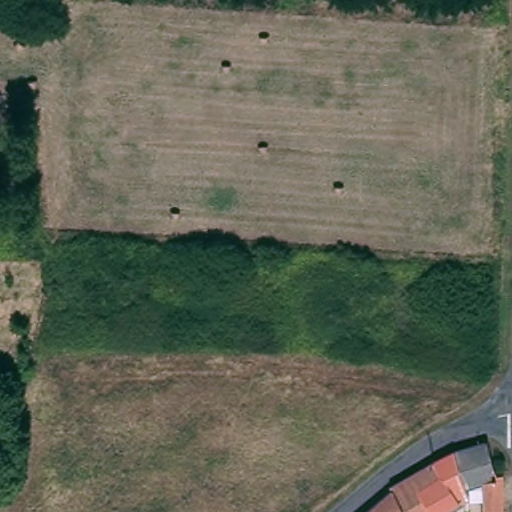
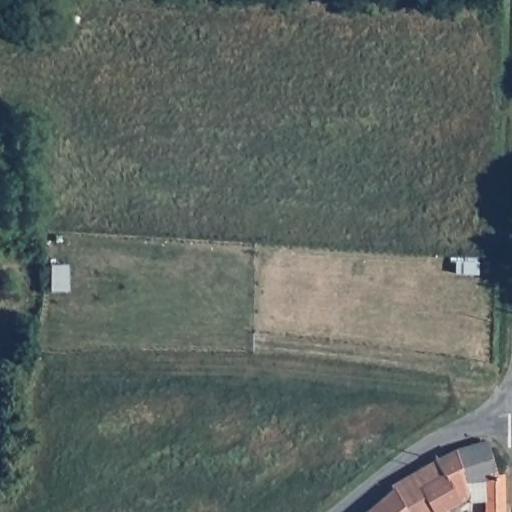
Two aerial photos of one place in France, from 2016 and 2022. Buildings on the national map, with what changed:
unchanged [(484,462),(467,470),(470,487),(448,502),(431,476),(450,461),(440,443),(497,423),(505,462),(511,462),(511,474),(506,512),(488,512),(489,462),(484,462)]
unchanged [(431,476),(448,502),(435,512),(419,512),(400,485),(395,477),(438,445),(440,443),(450,461),(431,476)]
unchanged [(368,512),(400,485),(419,512),(368,512)]

